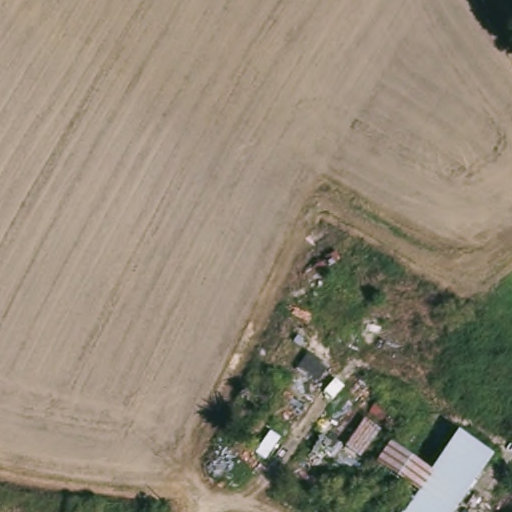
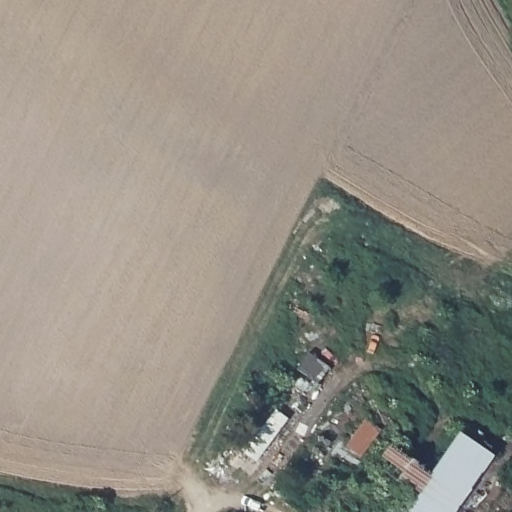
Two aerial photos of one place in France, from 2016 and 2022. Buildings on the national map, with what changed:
unchanged [(461,512),(395,512),(404,494),(410,450),(440,469),(449,458),(467,428),(502,449),(461,512)]

